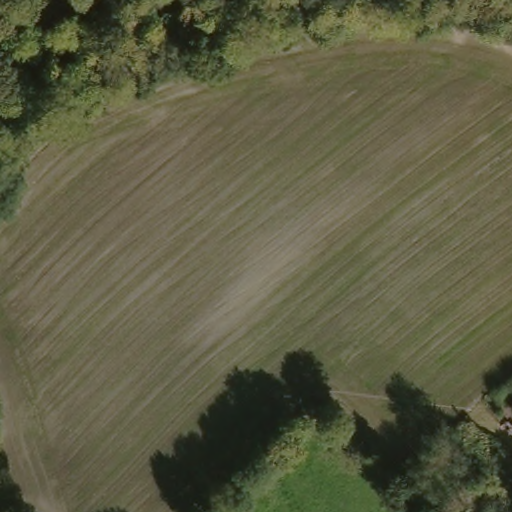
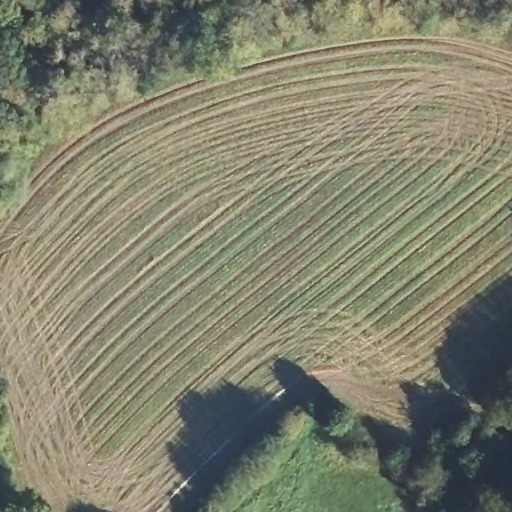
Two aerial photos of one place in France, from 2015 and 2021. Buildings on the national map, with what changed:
[]

